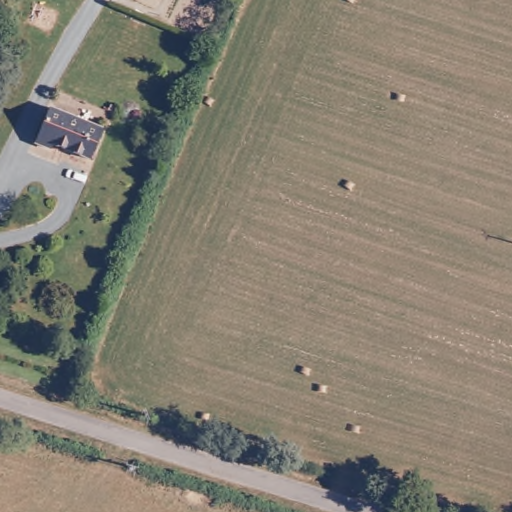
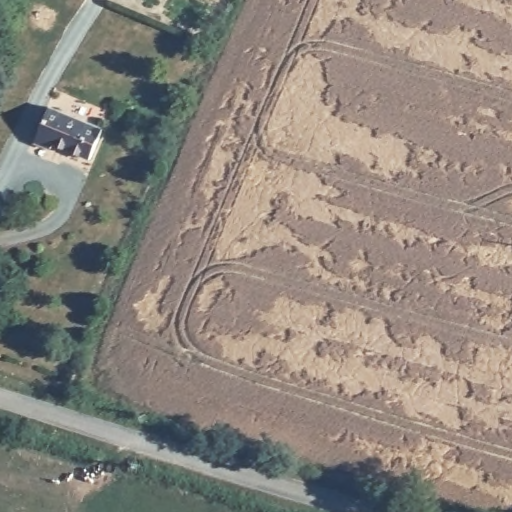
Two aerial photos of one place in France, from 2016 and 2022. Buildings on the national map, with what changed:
unchanged [(95,128),(84,155),(46,142),(43,145),(30,140),(44,107),(95,128)]

